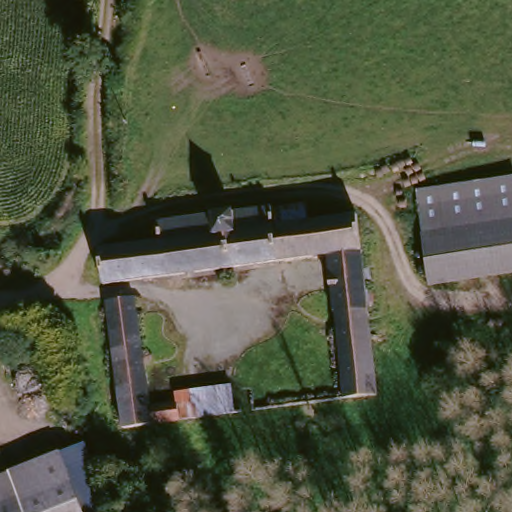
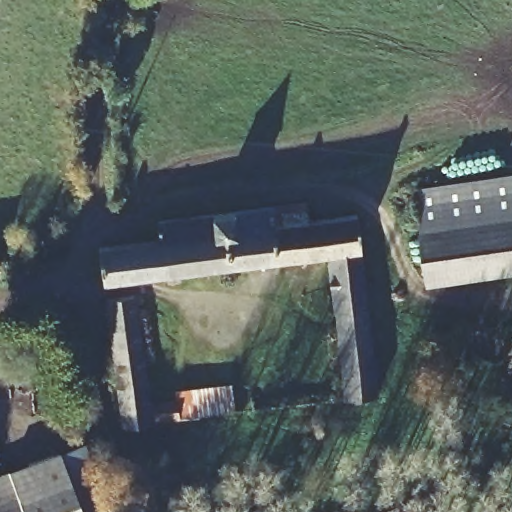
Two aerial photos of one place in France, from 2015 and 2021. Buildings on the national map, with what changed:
unchanged [(418,186),(512,172),(512,273),(434,286),(421,207),(418,186)]
unchanged [(354,241),(373,365),(376,384),(345,390),(323,251),(95,283),(89,252),(121,247),(151,242),(148,222),(299,199),(302,219),(305,219),(349,212),(354,241)]
unchanged [(111,365),(99,301),(133,295),(145,358),(111,365)]
unchanged [(111,365),(145,358),(154,408),(186,402),(189,419),(124,431),(111,365)]
unchanged [(211,415),(189,419),(186,402),(184,390),(235,381),(241,410),(211,415)]
unchanged [(38,461),(78,443),(98,483),(113,512),(25,512),(8,475),(38,461)]
unchanged [(25,512),(0,512),(0,478),(8,475),(25,512)]

